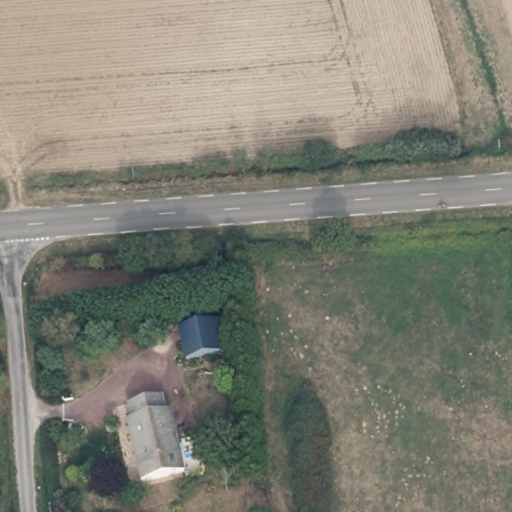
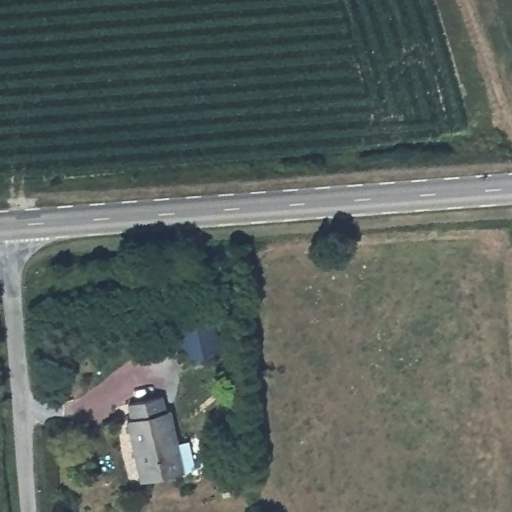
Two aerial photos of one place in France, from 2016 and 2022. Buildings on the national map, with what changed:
unchanged [(188,356),(182,325),(216,318),(222,348),(188,356)]
unchanged [(142,480),(126,417),(132,415),(128,400),(164,392),(167,408),(172,407),(186,470),(142,480)]

